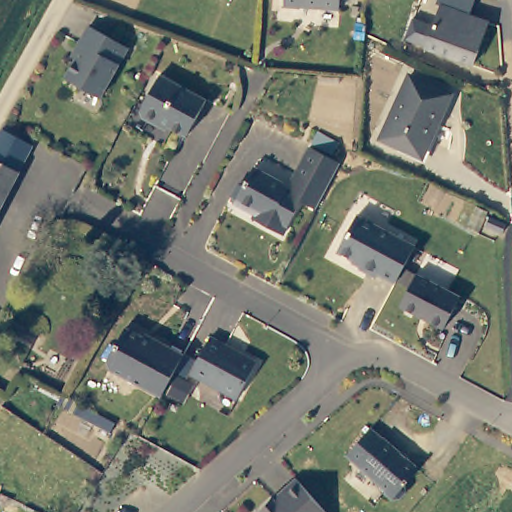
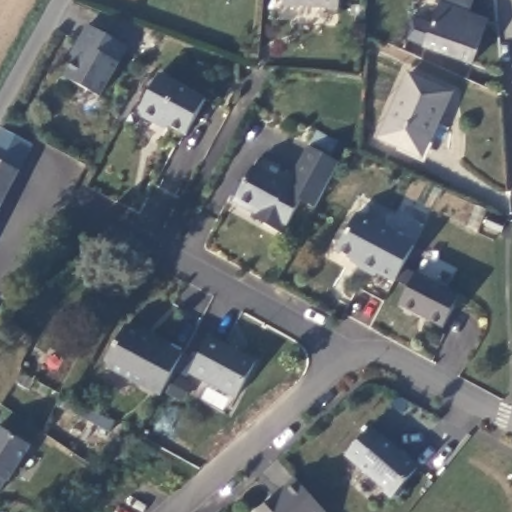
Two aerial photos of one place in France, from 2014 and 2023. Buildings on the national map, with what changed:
unchanged [(282,0),(338,0),(338,3),(282,2),(282,0)]
unchanged [(423,45),(402,36),(411,16),(432,25),(440,6),(436,4),(439,0),(476,0),(470,13),(468,18),(487,26),(468,68),(422,48),(423,45)]
unchanged [(123,46),(97,95),(61,77),(71,58),(66,55),(73,41),(81,26),(123,46)]
unchanged [(139,115),(138,110),(155,74),(202,99),(185,134),(158,120),(157,123),(139,115)]
unchanged [(437,126),(432,124),(421,152),(403,145),(402,149),(382,141),(409,76),(450,93),(437,126)]
unchanged [(31,145),(0,206),(0,129),(0,128),(31,145)]
unchanged [(235,200),(234,193),(240,181),(248,178),(256,165),(286,182),(293,181),(311,147),(342,165),(328,188),(317,209),(303,201),(285,234),(266,224),(269,219),(257,212),(235,200)]
unchanged [(354,266),(356,262),(332,249),(351,213),(410,244),(391,280),(373,271),(371,275),(354,266)]
unchanged [(484,231),(487,222),(504,229),(500,238),(484,231)]
unchanged [(396,305),(414,273),(458,297),(440,329),(396,305)]
unchanged [(158,397),(105,369),(103,362),(122,328),(148,342),(150,339),(180,355),(158,397)]
unchanged [(206,338),(253,364),(233,400),(186,375),(206,338)]
unchanged [(60,396),(65,398),(114,424),(108,434),(55,406),(60,396)]
unchanged [(401,490),(396,497),(389,498),(382,492),(381,487),(343,454),(367,427),(379,437),(415,467),(401,483),(401,490)]
new [(8,483),(6,481),(0,491),(0,428),(29,446),(8,483)]
demolished [(0,485),(0,443),(14,449),(0,485)]
unchanged [(270,498),(274,502),(282,494),(279,491),(293,478),(324,512),(258,512),(256,511),(270,498)]

